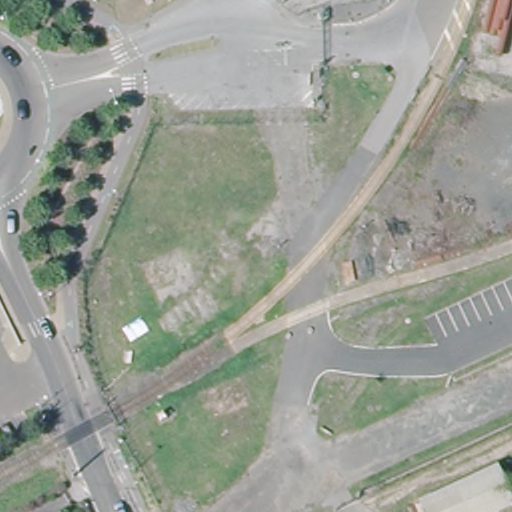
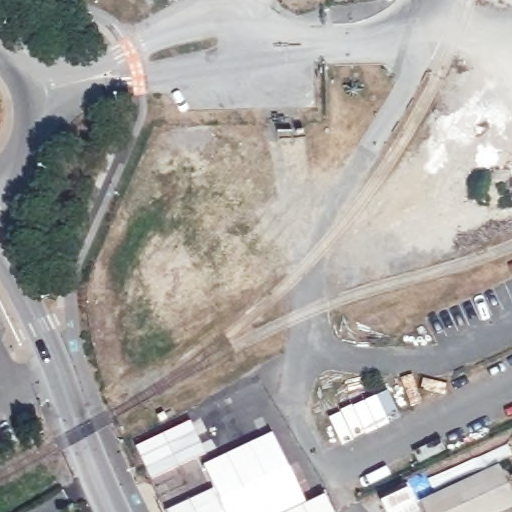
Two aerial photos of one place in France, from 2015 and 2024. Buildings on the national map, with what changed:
new [(378,393),(388,417),(341,445),(327,416),(378,393)]
new [(190,419),(206,453),(150,479),(134,445),(190,419)]
new [(203,464),(272,431),(307,501),(325,493),(334,512),(166,512),(165,508),(213,487),(203,464)]
unchanged [(490,512),(424,512),(418,499),(495,463),(512,500),(512,502),(490,512)]
unchanged [(509,473),(512,472),(512,481),(509,473)]

